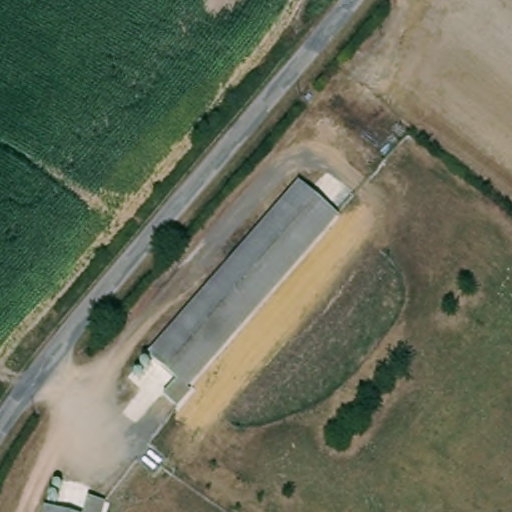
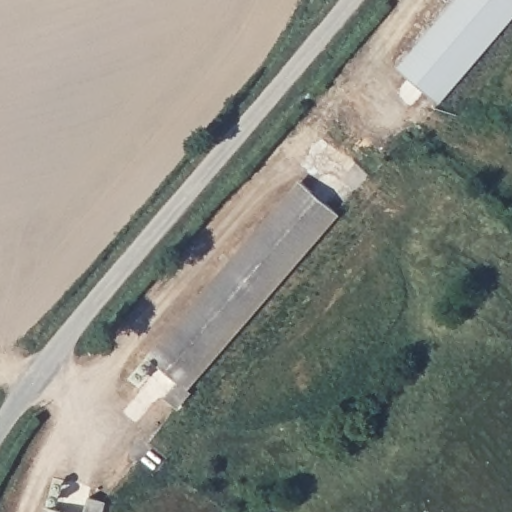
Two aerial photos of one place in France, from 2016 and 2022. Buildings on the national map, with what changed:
new [(399,67),(456,0),(512,0),(512,17),(440,102),(399,67)]
unchanged [(337,214),(187,391),(192,394),(178,410),(167,400),(180,385),(152,362),(302,184),(337,214)]
unchanged [(114,502),(110,512),(94,512),(99,497),(114,502)]
unchanged [(80,512),(56,512),(59,504),(80,512)]

